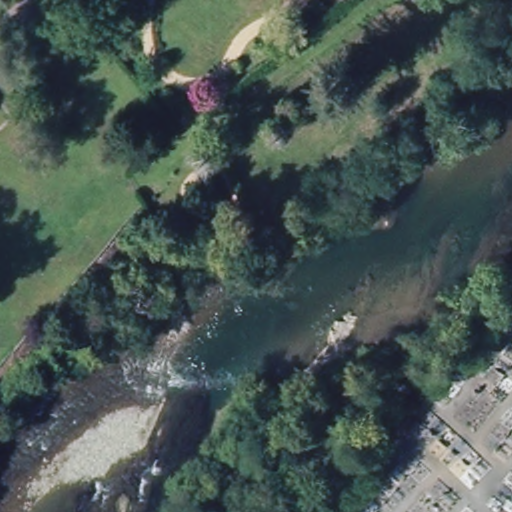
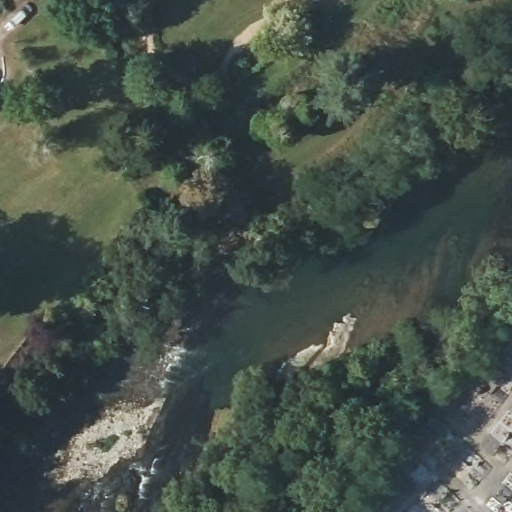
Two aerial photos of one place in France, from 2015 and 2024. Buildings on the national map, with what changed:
unchanged [(317,38),(288,57),(264,31),(299,11),(317,38)]

